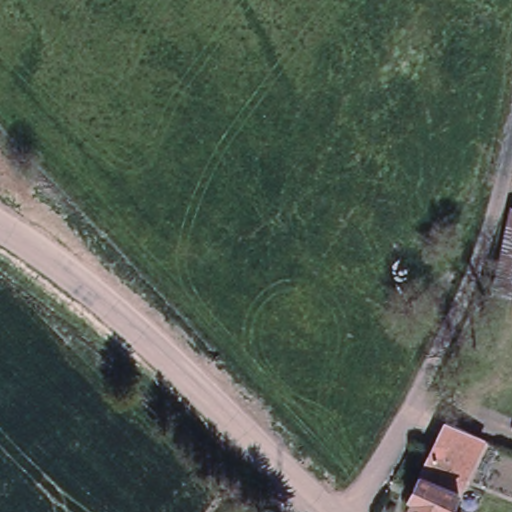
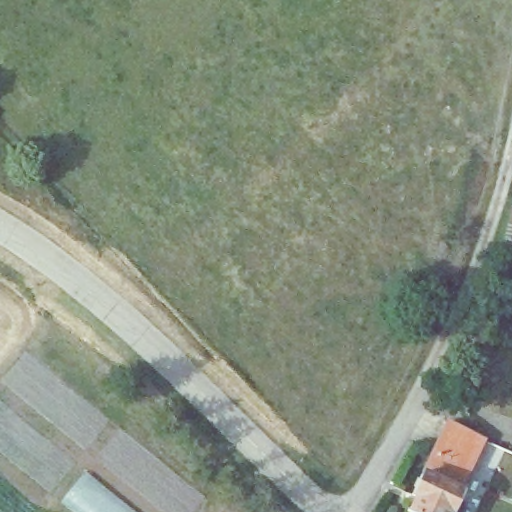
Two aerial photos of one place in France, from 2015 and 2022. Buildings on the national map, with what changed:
unchanged [(512,207),(512,286),(510,298),(487,294),(505,205),(512,207)]
unchanged [(510,298),(512,286),(512,299),(510,298)]
unchanged [(453,509),(460,512),(420,512),(410,507),(416,493),(414,492),(422,472),(426,475),(437,450),(435,448),(447,421),(475,433),(462,461),(456,458),(445,482),(462,490),(453,509)]
new [(87,472),(135,512),(73,512),(62,503),(87,472)]

